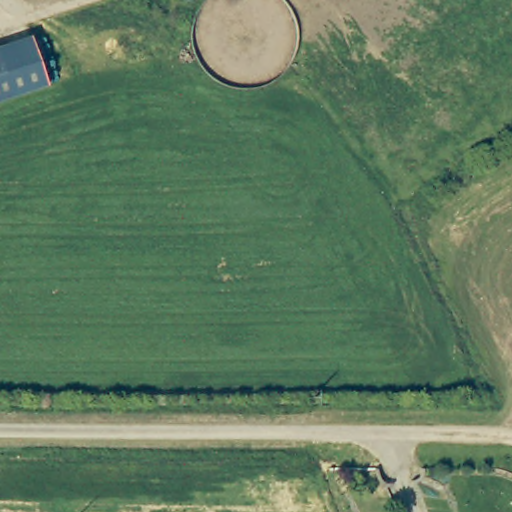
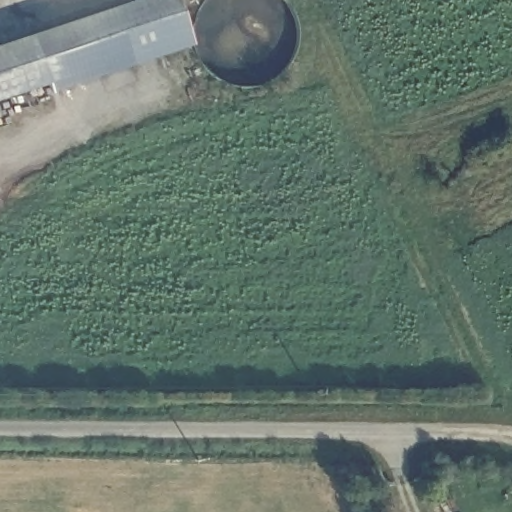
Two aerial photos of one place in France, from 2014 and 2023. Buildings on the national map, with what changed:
new [(174,0),(191,45),(50,92),(47,84),(0,99),(0,45),(135,0),(174,0)]

